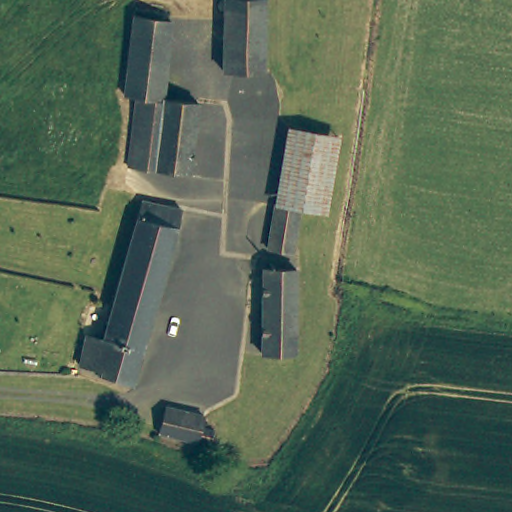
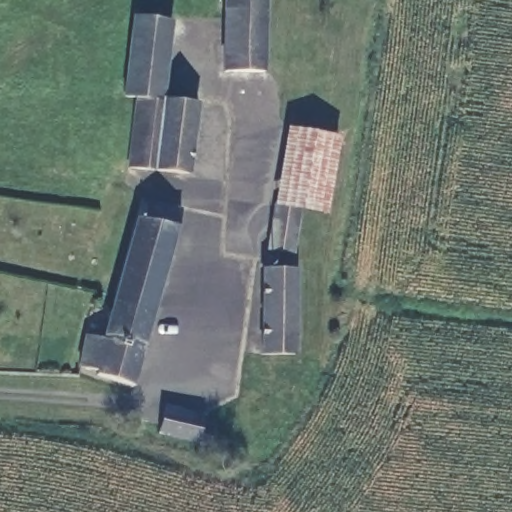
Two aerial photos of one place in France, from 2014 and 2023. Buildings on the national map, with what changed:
unchanged [(225,69),(225,0),(266,0),(267,69),(225,69)]
unchanged [(127,97),(135,19),(172,22),(167,100),(138,98),(127,97)]
unchanged [(199,103),(191,176),(132,169),(131,167),(138,98),(167,100),(199,103)]
unchanged [(291,131),(340,140),(327,213),(303,211),(277,206),(291,131)]
unchanged [(135,387),(102,376),(100,371),(83,367),(88,337),(105,340),(145,203),(182,210),(135,387)]
unchanged [(296,255),(270,251),(277,206),(303,211),(296,255)]
unchanged [(293,270),(292,355),(260,355),(261,270),(293,270)]
unchanged [(162,403),(202,413),(200,423),(211,426),(207,442),(156,429),(162,403)]

